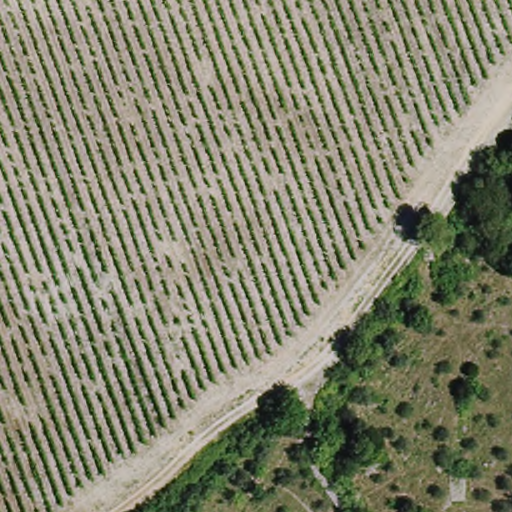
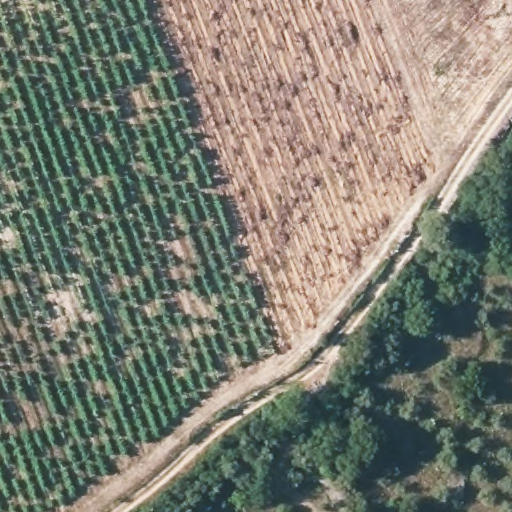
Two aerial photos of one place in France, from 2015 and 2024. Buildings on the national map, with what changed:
[]

